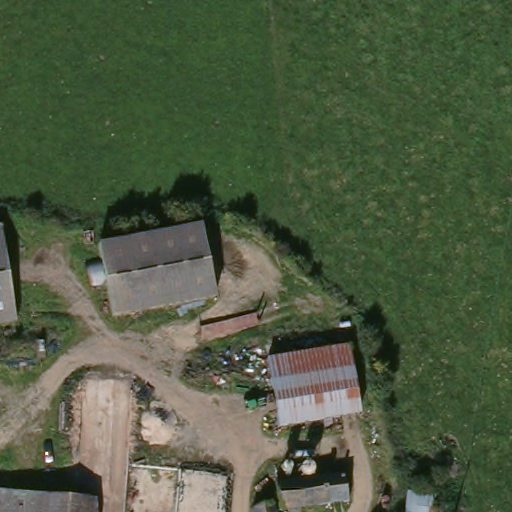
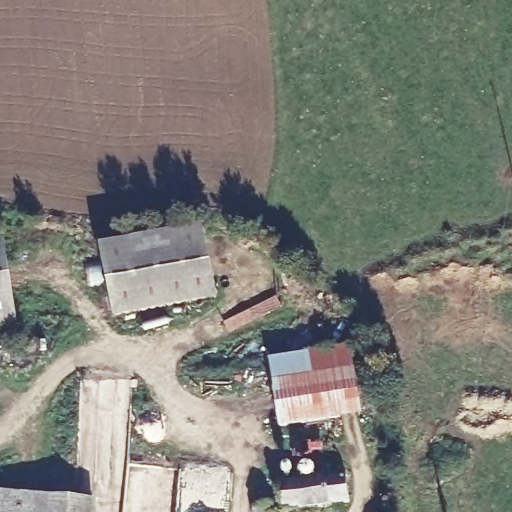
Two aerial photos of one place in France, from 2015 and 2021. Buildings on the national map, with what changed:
unchanged [(206,304),(107,317),(97,244),(196,232),(206,304)]
unchanged [(5,330),(0,330),(0,289),(5,330)]
unchanged [(347,347),(358,416),(317,422),(307,353),(347,347)]
unchanged [(317,422),(276,428),(264,359),(307,353),(317,422)]
unchanged [(347,504),(278,512),(274,485),(343,476),(347,504)]
unchanged [(428,512),(400,512),(402,495),(431,496),(428,512)]
unchanged [(94,512),(0,512),(0,498),(94,507),(94,512)]
unchanged [(270,504),(272,512),(248,512),(247,508),(270,504)]

